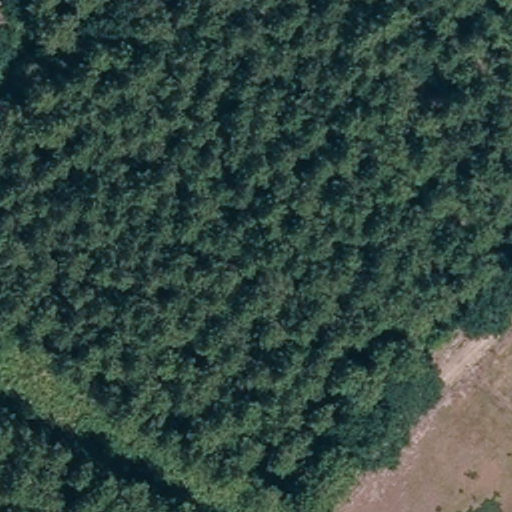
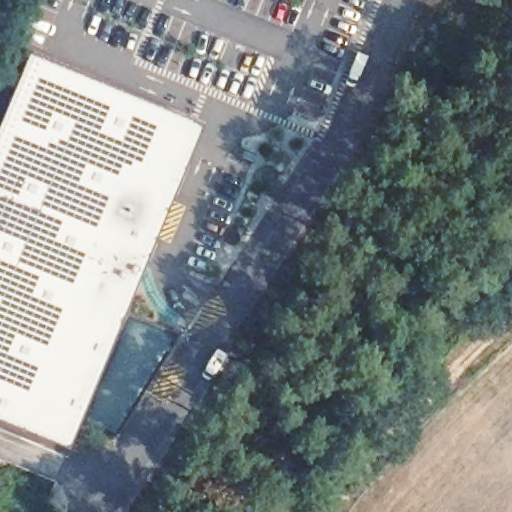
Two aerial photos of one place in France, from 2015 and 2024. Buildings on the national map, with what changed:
new [(69,449),(0,421),(0,125),(29,54),(203,127),(69,449)]

